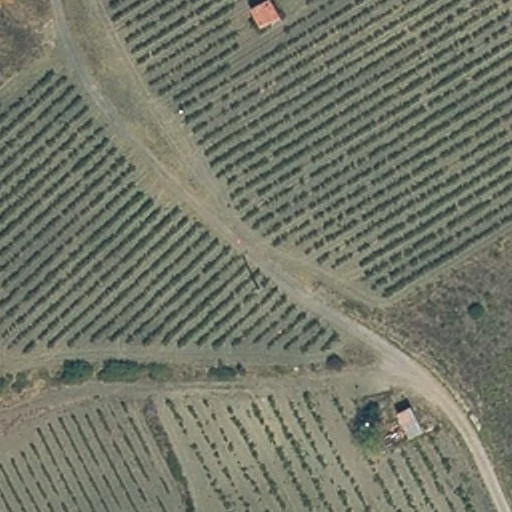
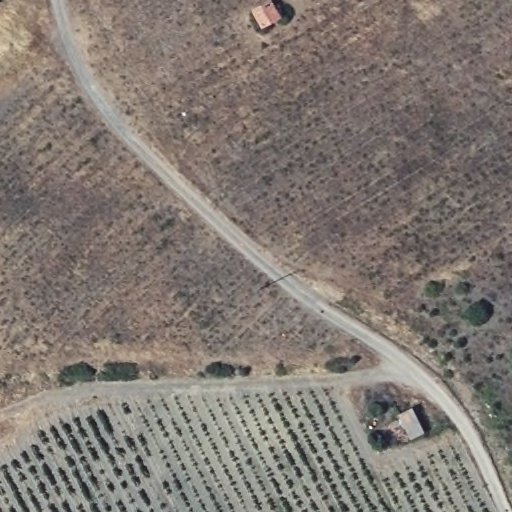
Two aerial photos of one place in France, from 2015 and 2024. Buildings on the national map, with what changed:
unchanged [(266,0),(272,0),(282,15),(261,28),(251,9),(266,0)]
unchanged [(425,400),(436,427),(411,439),(399,412),(425,400)]

